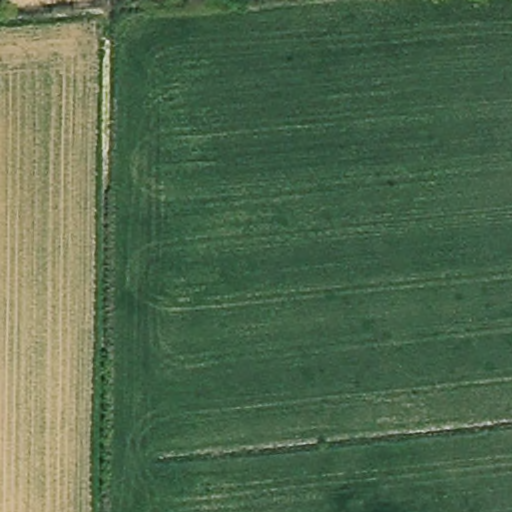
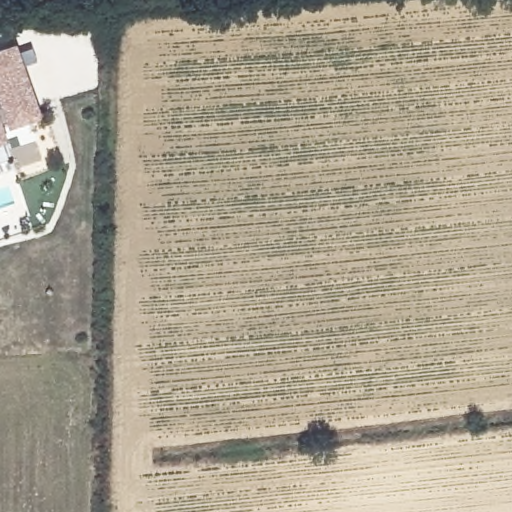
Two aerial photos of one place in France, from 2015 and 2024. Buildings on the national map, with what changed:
new [(1,88),(5,97),(0,83),(0,46),(18,40),(41,111),(12,120),(10,116),(1,119),(6,134),(0,137),(0,88),(1,88)]

